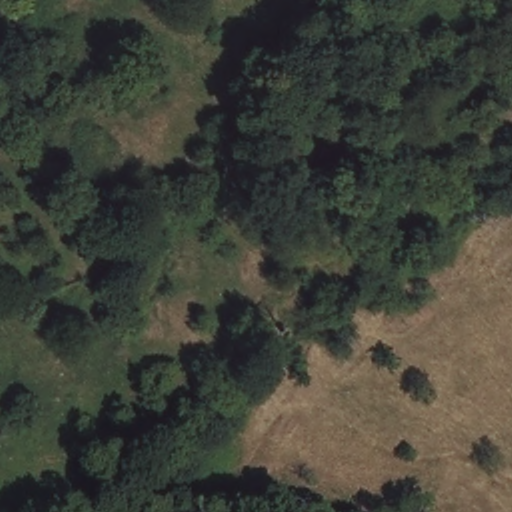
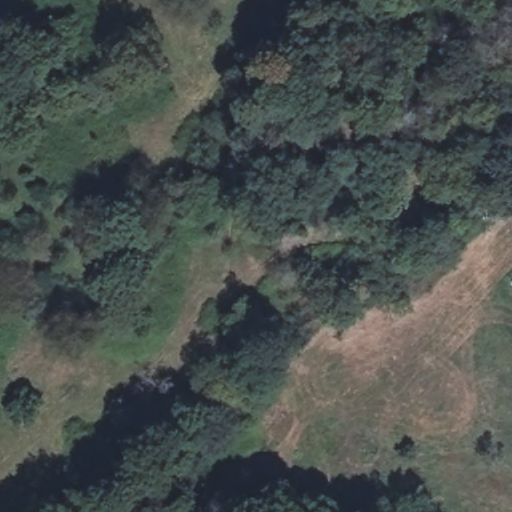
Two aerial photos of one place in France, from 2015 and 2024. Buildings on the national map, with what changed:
unchanged [(11,48),(0,32),(0,0),(1,0),(28,37),(11,48)]

